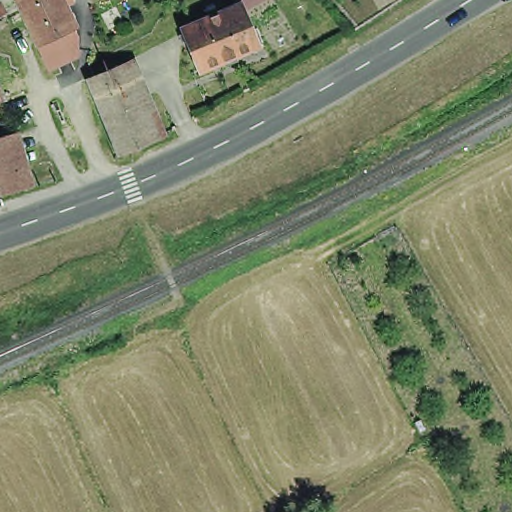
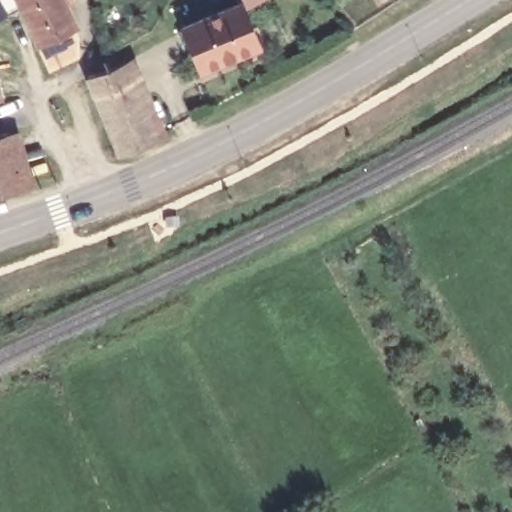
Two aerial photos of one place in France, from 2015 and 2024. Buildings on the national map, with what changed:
unchanged [(78,34),(80,40),(82,59),(52,71),(37,42),(19,0),(67,0),(82,31),(78,34)]
unchanged [(245,9),(239,0),(273,0),(248,15),(263,51),(205,75),(193,47),(187,50),(182,40),(190,37),(188,33),(245,9)]
unchanged [(5,16),(0,19),(0,8),(5,16)]
unchanged [(120,159),(89,82),(126,67),(156,144),(120,159)]
unchanged [(2,104),(0,104),(0,98),(2,104)]
unchanged [(0,200),(0,142),(11,139),(20,173),(25,194),(0,200)]

